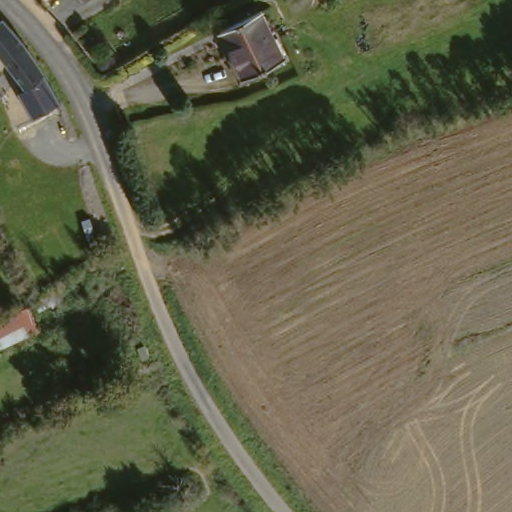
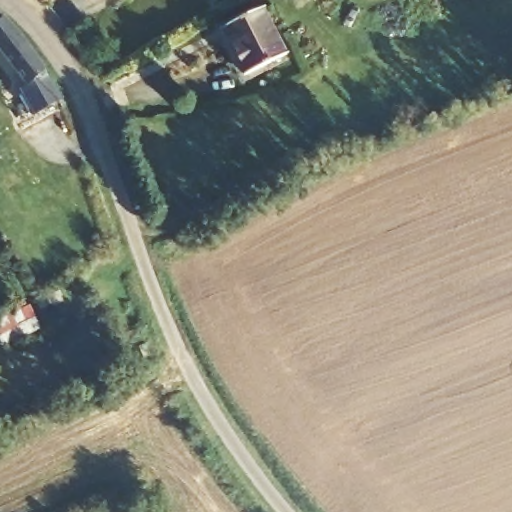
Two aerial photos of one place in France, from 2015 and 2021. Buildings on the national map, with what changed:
unchanged [(262,8),(286,53),(247,74),(222,29),(262,8)]
unchanged [(35,49),(53,73),(34,85),(16,61),(0,44),(0,25),(6,18),(7,17),(22,35),(35,49)]
unchanged [(0,328),(0,317),(35,301),(45,327),(7,344),(0,328)]

